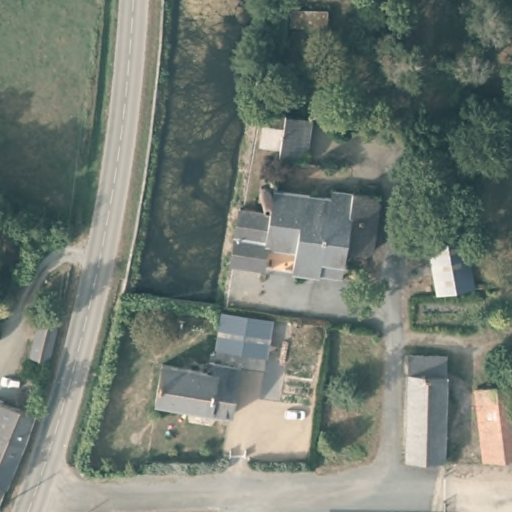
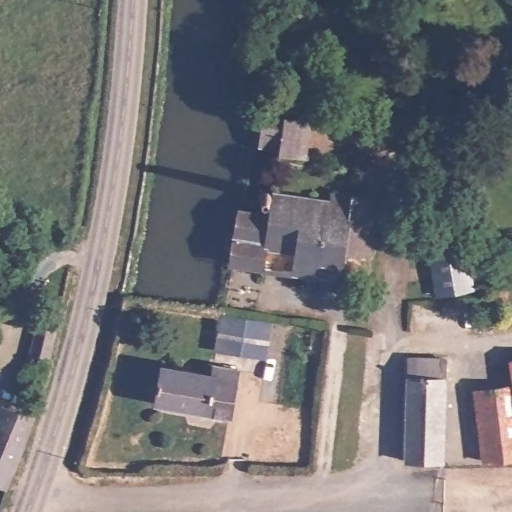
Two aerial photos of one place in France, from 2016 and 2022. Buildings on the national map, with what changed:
unchanged [(291,5),(325,7),(322,33),(285,27),(291,5)]
unchanged [(272,161),(271,156),(252,152),(255,124),(278,125),(281,120),(306,124),(302,162),(272,161)]
unchanged [(312,277),(254,269),(260,214),(261,202),(253,201),(255,189),(261,190),(327,199),(328,187),(348,190),(348,192),(365,195),(372,204),(366,247),(360,253),(340,251),(338,264),(336,281),(312,277)]
unchanged [(434,286),(421,201),(457,197),(463,232),(471,282),(473,294),(437,300),(434,286)]
unchanged [(221,265),(230,209),(235,210),(260,214),(254,269),(221,265)]
unchanged [(214,355),(217,330),(219,317),(267,325),(262,362),(214,355)]
unchanged [(500,318),(501,332),(490,333),(487,320),(500,318)]
unchanged [(32,339),(38,321),(57,325),(52,346),(47,363),(27,358),(32,339)]
unchanged [(444,462),(408,460),(412,357),(445,358),(444,462)]
unchanged [(157,366),(205,376),(207,364),(212,365),(236,370),(228,417),(164,407),(151,404),(157,366)]
unchanged [(482,390),(512,387),(512,420),(485,424),(482,390)]
unchanged [(0,431),(0,400),(35,408),(35,410),(26,441),(0,431)]
unchanged [(485,424),(512,420),(512,459),(490,460),(485,424)]
unchanged [(0,480),(0,431),(26,441),(12,485),(0,480)]

